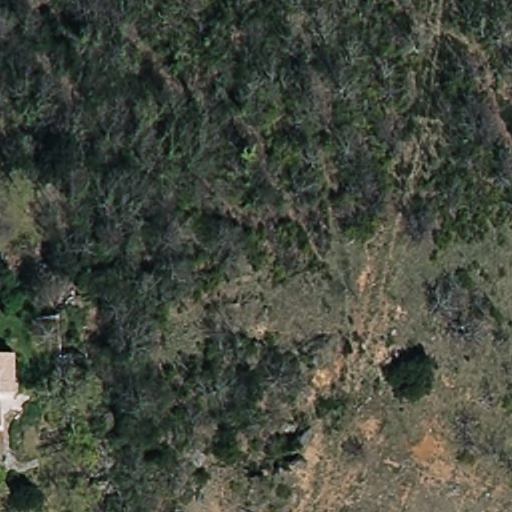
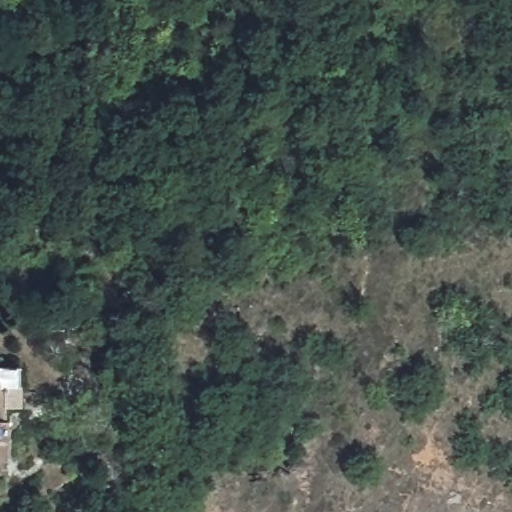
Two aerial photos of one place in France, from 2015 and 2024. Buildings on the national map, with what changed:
unchanged [(23,403),(7,404),(7,437),(0,436),(0,366),(22,366),(23,403)]

